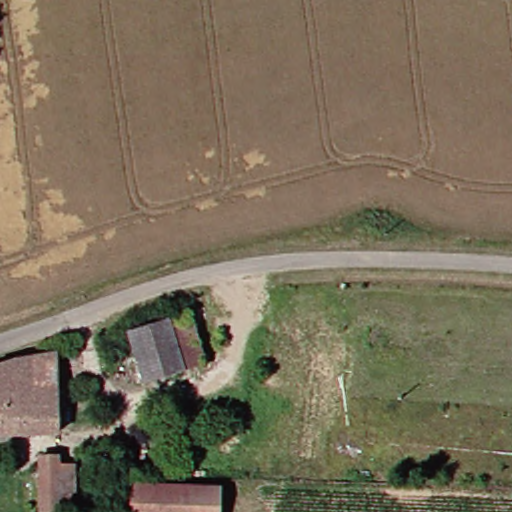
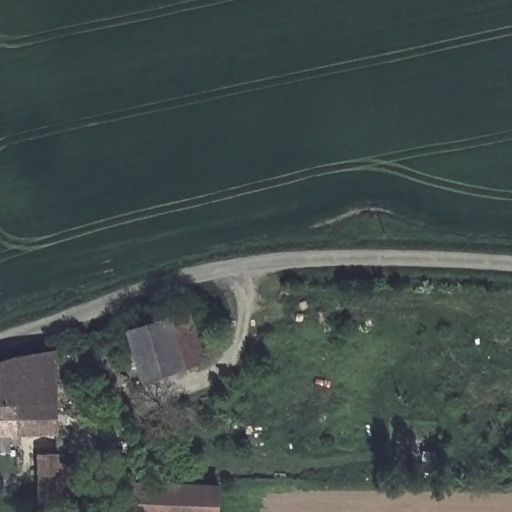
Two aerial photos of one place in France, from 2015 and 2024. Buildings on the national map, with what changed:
unchanged [(139,379),(124,330),(182,313),(195,362),(139,379)]
unchanged [(0,366),(47,357),(52,436),(5,437),(5,453),(0,453),(0,366)]
unchanged [(69,463),(68,496),(64,496),(64,511),(31,511),(31,462),(69,463)]
unchanged [(128,512),(128,485),(214,489),(213,512),(128,512)]

